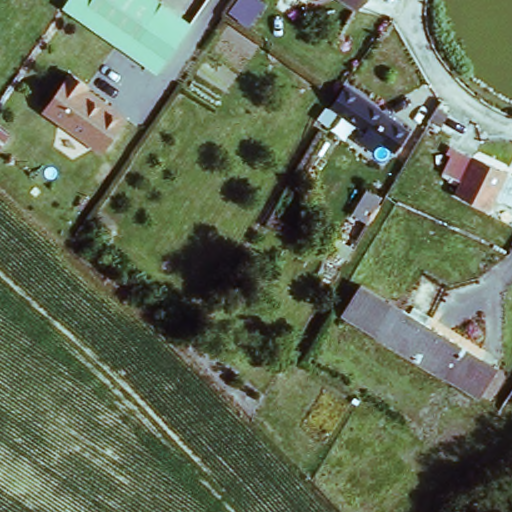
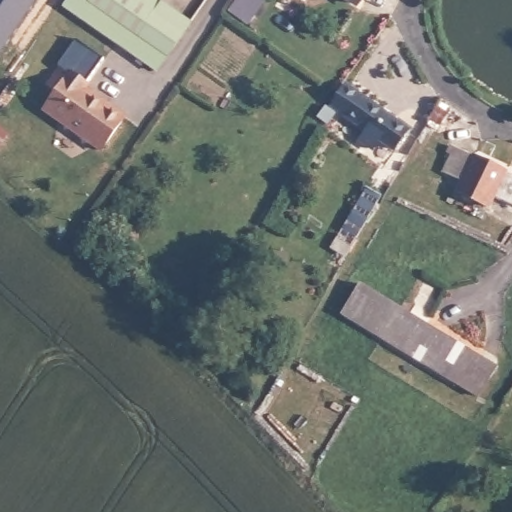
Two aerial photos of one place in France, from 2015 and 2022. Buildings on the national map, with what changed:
new [(0,0),(38,0),(0,57),(0,0)]
unchanged [(161,0),(191,22),(155,73),(61,6),(65,0),(161,0)]
unchanged [(345,0),(358,0),(355,6),(345,0)]
unchanged [(71,72),(96,88),(95,92),(128,116),(101,152),(42,112),(71,72)]
unchanged [(347,86),(410,131),(396,151),(381,140),(375,147),(362,140),(368,131),(332,105),(347,86)]
unchanged [(426,136),(432,126),(426,122),(440,102),(442,100),(473,119),(459,143),(452,139),(446,150),(426,136)]
new [(0,151),(0,129),(10,136),(0,151)]
unchanged [(449,153),(453,146),(512,174),(512,204),(497,196),(491,207),(457,193),(463,180),(445,172),(453,156),(449,153)]
unchanged [(381,197),(368,221),(352,212),(367,187),(381,197)]
unchanged [(344,315),(362,284),(497,367),(480,396),(456,382),(344,315)]

